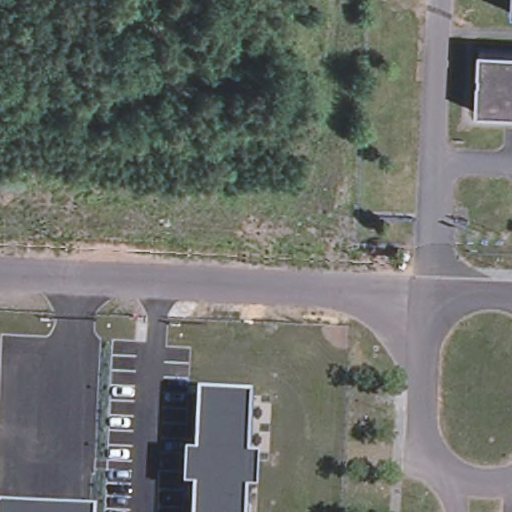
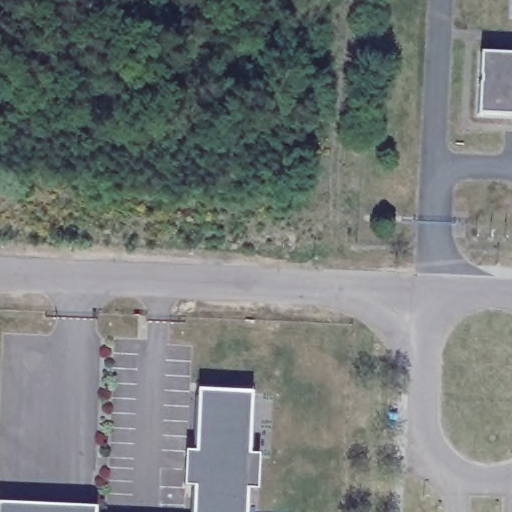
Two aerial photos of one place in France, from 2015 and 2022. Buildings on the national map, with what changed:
unchanged [(477,110),(480,47),(512,49),(512,112),(477,110)]
unchanged [(183,485),(185,451),(195,451),(197,389),(250,392),(247,455),(257,455),(256,490),(247,489),(246,512),(192,512),(193,485),(183,485)]
unchanged [(94,512),(0,512),(0,502),(94,506),(94,512)]

